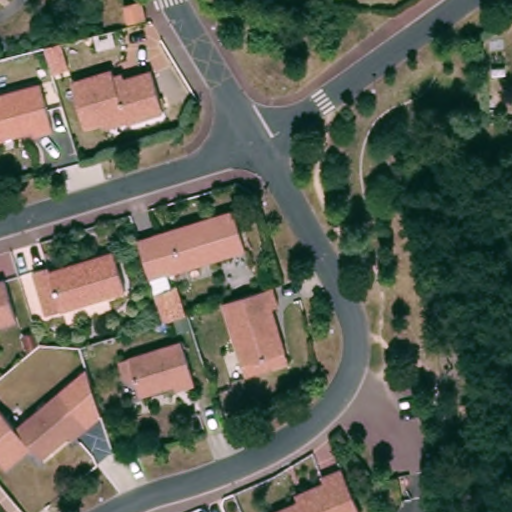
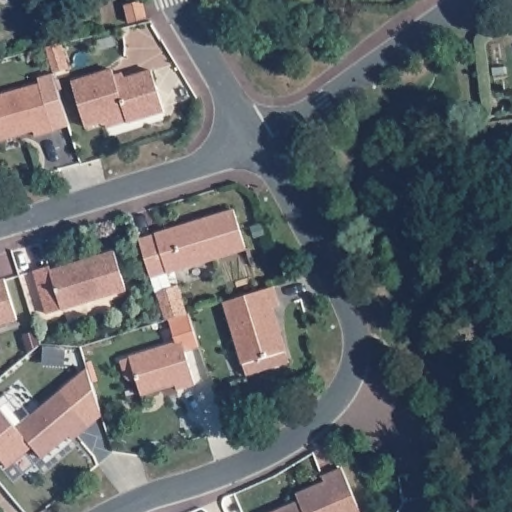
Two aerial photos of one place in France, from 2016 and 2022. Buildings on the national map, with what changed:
unchanged [(143,1),(147,19),(129,23),(125,5),(143,1)]
unchanged [(72,83),(113,70),(116,82),(152,71),(165,111),(128,124),(128,123),(125,115),(105,121),(86,127),(72,83)]
unchanged [(55,126),(36,132),(35,126),(0,137),(0,93),(41,80),(55,126)]
unchanged [(235,206),(247,245),(151,274),(139,235),(235,206)]
unchanged [(127,286),(48,310),(34,267),(50,262),(51,266),(115,247),(127,286)]
unchanged [(0,321),(0,278),(5,276),(18,316),(0,321)]
unchanged [(276,364),(252,372),(230,298),(280,283),(285,301),(278,304),(291,347),(294,358),(276,364)]
unchanged [(39,345),(29,354),(24,336),(35,333),(39,345)]
unchanged [(196,381),(177,386),(175,380),(141,391),(137,376),(136,376),(136,377),(135,377),(134,377),(133,377),(132,377),(131,377),(130,377),(130,376),(129,376),(128,376),(128,375),(127,375),(127,374),(126,374),(126,373),(126,372),(125,372),(125,371),(121,356),(183,337),(196,381)]
unchanged [(60,389),(90,423),(73,437),(69,433),(42,456),(32,445),(30,446),(25,447),(23,447),(20,445),(17,442),(9,433),(60,389)]
unchanged [(300,499),(297,492),(325,480),(323,474),(343,466),(363,512),(271,512),(300,499)]
unchanged [(3,478),(0,480),(0,473),(3,478)]

